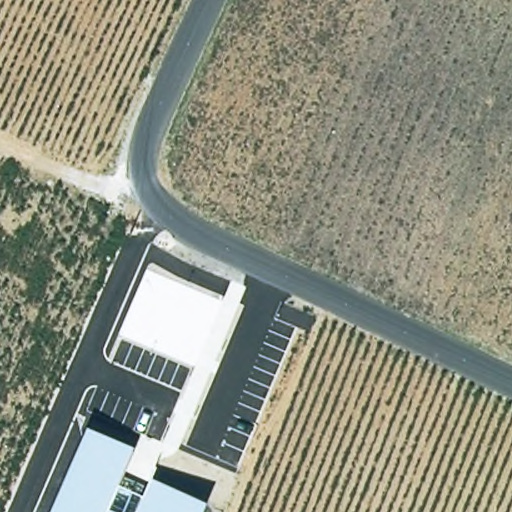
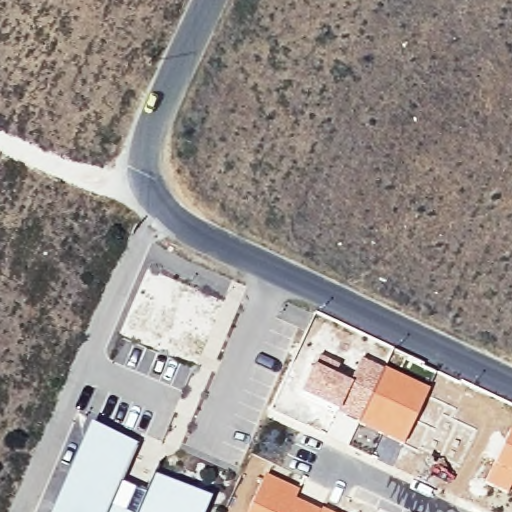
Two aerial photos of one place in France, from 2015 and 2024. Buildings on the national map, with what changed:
new [(317,358),(328,364),(327,366),(332,370),(347,381),(350,383),(335,414),(297,395),(317,358)]
new [(335,414),(350,383),(347,381),(360,358),(384,369),(357,425),(348,445),(325,434),(335,414)]
new [(384,369),(428,392),(394,466),(372,455),(381,436),(357,425),(384,369)]
unchanged [(135,446),(117,484),(146,496),(153,478),(207,499),(202,512),(53,512),(90,427),(135,446)]
new [(507,431),(512,433),(512,486),(507,494),(482,482),(507,431)]
new [(297,492),(294,499),(320,510),(319,512),(246,512),(262,476),(297,492)]
new [(389,512),(376,512),(379,507),(389,512)]
new [(324,512),(319,512),(320,510),(324,512)]

